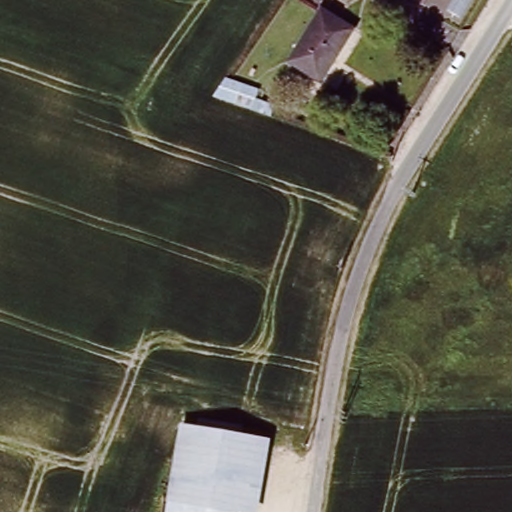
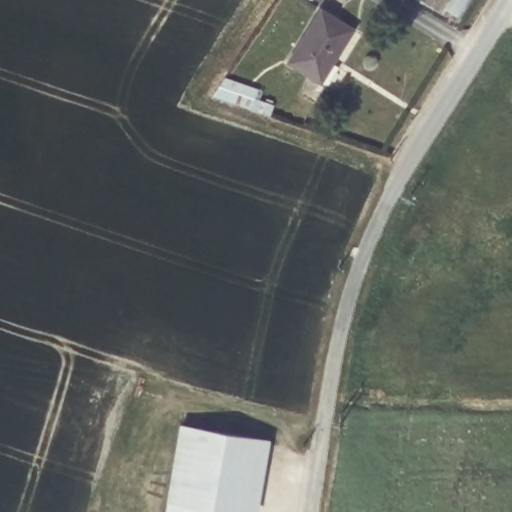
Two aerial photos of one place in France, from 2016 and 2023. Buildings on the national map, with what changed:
unchanged [(352,26),(321,78),(290,59),(321,7),(352,26)]
unchanged [(240,108),(210,98),(217,86),(244,96),(240,108)]
unchanged [(262,512),(255,512),(240,510),(170,499),(171,495),(182,422),(273,436),(262,512)]
unchanged [(240,510),(240,512),(168,512),(170,499),(240,510)]

